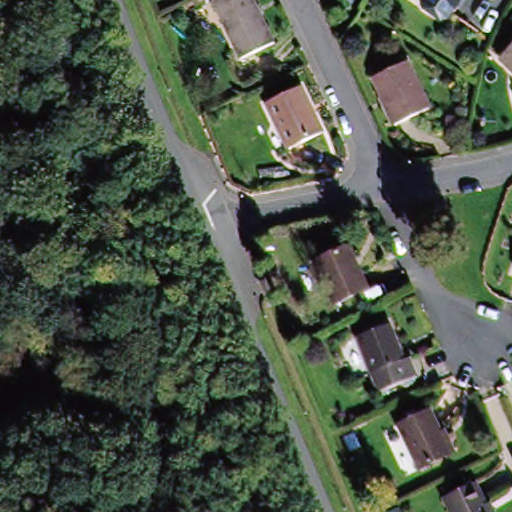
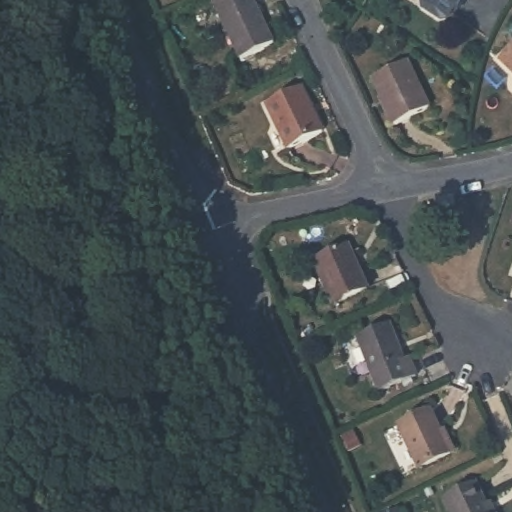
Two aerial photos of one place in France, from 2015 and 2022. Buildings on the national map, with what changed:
unchanged [(216,0),(253,0),(277,53),(244,69),(219,16),(212,1),(216,0)]
unchanged [(458,10),(450,23),(443,24),(425,13),(424,5),(428,0),(467,0),(460,11),(458,10)]
unchanged [(512,70),(502,55),(512,48),(512,70)]
unchanged [(406,68),(426,115),(390,131),(370,86),(406,68)]
unchanged [(265,107),(301,90),(322,136),(286,154),(265,107)]
unchanged [(311,264),(344,248),(357,279),(361,275),(368,291),(333,309),(311,264)]
unchanged [(419,380),(379,398),(372,379),(355,340),(388,325),(404,364),(411,361),(419,380)]
unchanged [(453,453),(446,457),(416,471),(397,427),(426,413),(435,433),(442,429),(453,453)]
unchanged [(449,503),(481,489),(489,512),(452,512),(449,503)]

